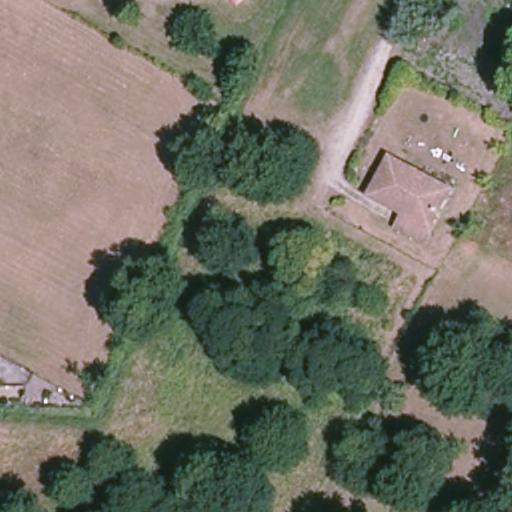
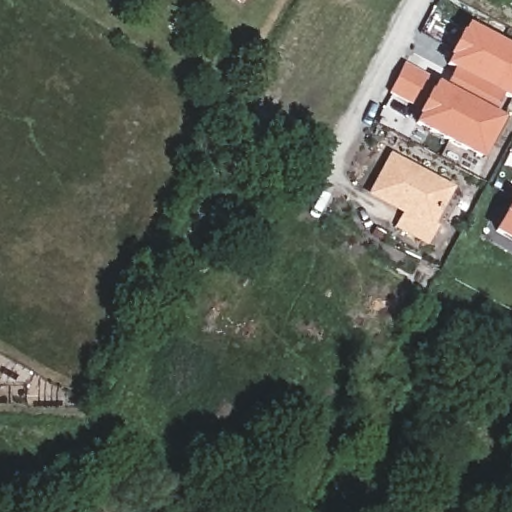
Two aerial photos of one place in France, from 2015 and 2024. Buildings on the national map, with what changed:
unchanged [(242,5),(237,0),(247,0),(242,5)]
unchanged [(503,0),(512,0),(512,7),(503,0)]
new [(496,92),(493,99),(462,82),(465,76),(449,67),(468,30),(512,53),(512,101),(496,92)]
demolished [(490,105),(452,79),(464,62),(502,90),(490,105)]
new [(403,66),(429,80),(415,106),(389,93),(403,66)]
new [(437,89),(453,97),(457,91),(488,107),(485,114),(501,122),(481,160),(417,126),(437,89)]
unchanged [(437,229),(428,245),(399,231),(407,215),(372,197),(391,160),(422,176),(451,190),(449,195),(433,227),(437,229)]
new [(492,234),(512,196),(512,245),(492,234)]

